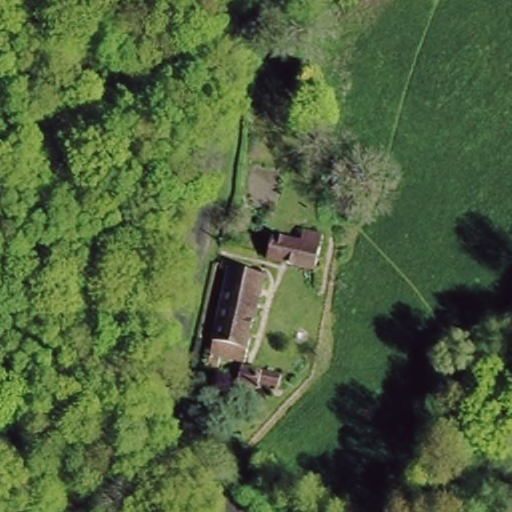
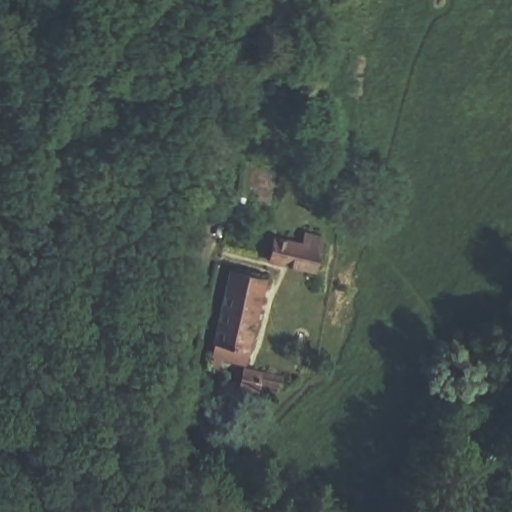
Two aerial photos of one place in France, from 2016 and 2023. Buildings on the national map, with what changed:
unchanged [(319,270),(268,260),(270,253),(272,239),(278,240),(288,242),(300,244),(302,233),(321,237),(318,248),(323,249),(319,270)]
unchanged [(231,272),(263,281),(240,365),(208,357),(231,272)]
unchanged [(279,381),(276,394),(254,390),(253,394),(236,390),(240,373),(279,381)]

